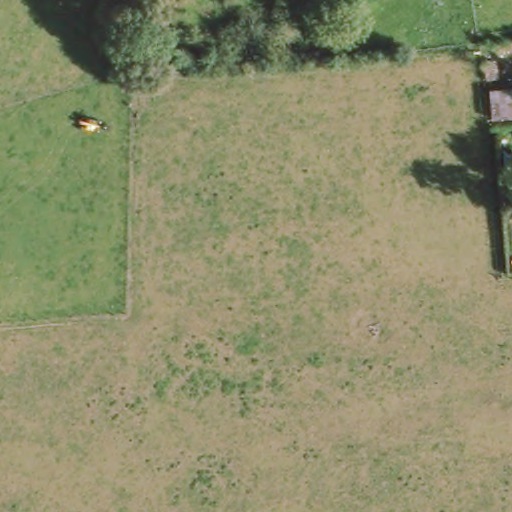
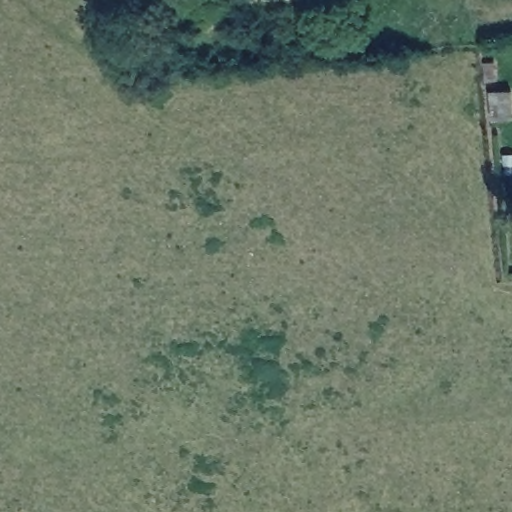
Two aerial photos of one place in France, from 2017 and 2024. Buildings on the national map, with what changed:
unchanged [(486,63),(498,61),(499,73),(512,72),(512,92),(512,120),(492,120),(489,89),(486,63)]

